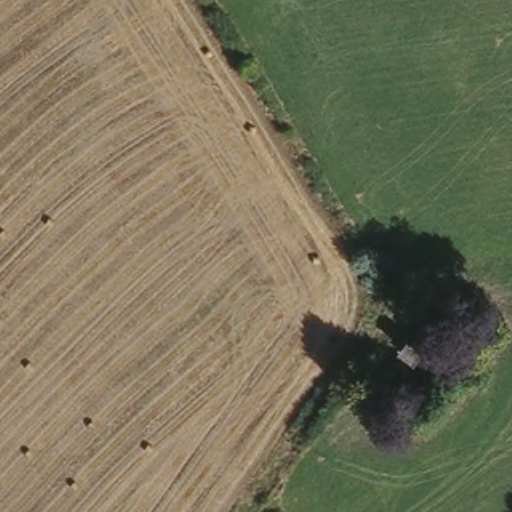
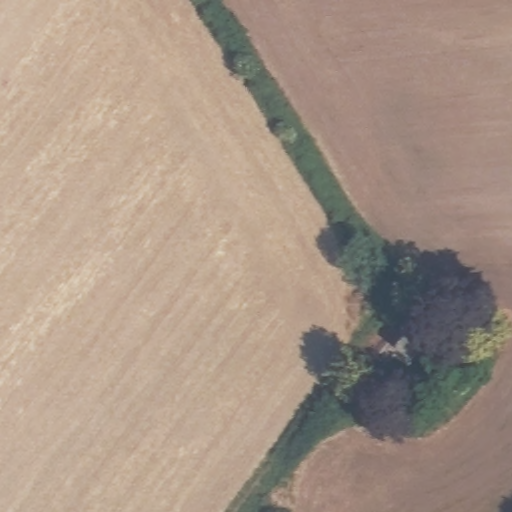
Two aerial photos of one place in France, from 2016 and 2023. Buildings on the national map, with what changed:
unchanged [(412,336),(431,351),(414,373),(394,358),(412,336)]

